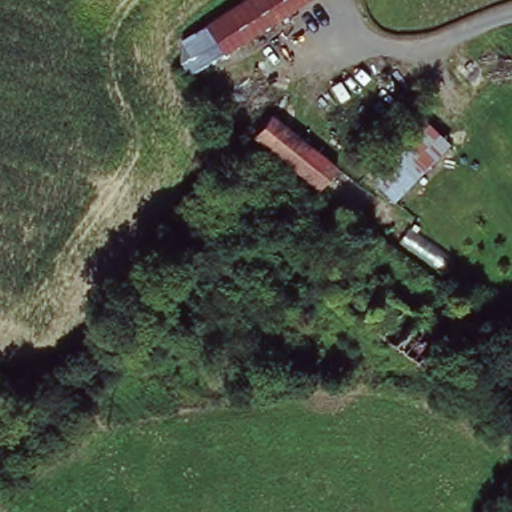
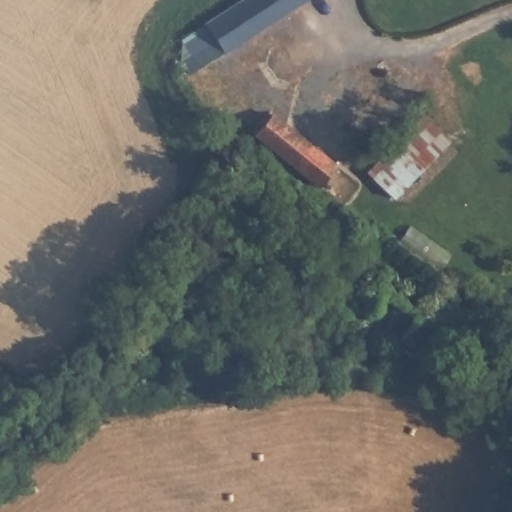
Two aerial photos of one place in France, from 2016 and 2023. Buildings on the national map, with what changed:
unchanged [(194,81),(181,64),(181,43),(204,30),(202,27),(242,0),(311,0),(225,61),(194,81)]
unchanged [(266,114),(335,164),(315,190),(245,140),(266,114)]
unchanged [(367,175),(413,130),(443,157),(398,202),(367,175)]

